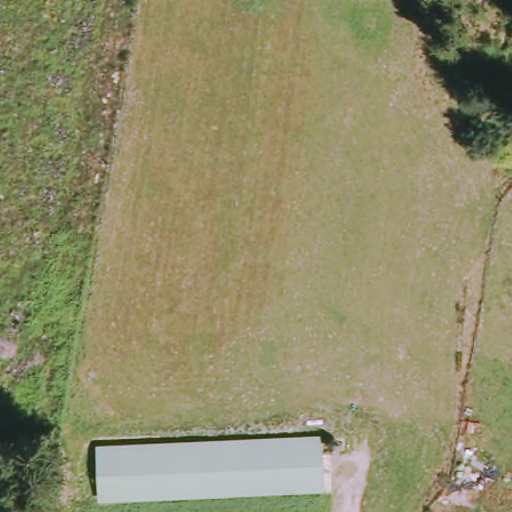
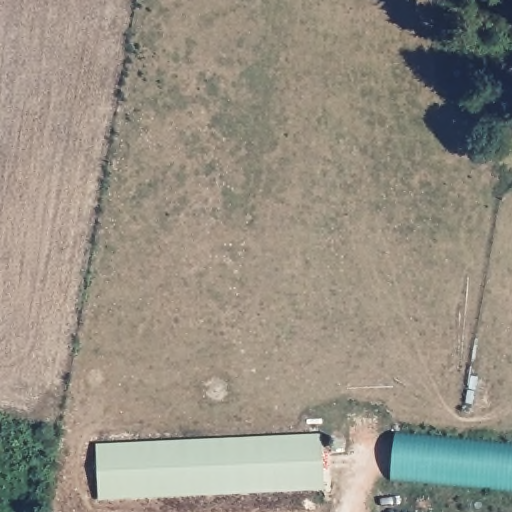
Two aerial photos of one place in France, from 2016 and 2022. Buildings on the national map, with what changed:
new [(512,489),(392,478),(397,434),(512,446),(512,489)]
unchanged [(105,499),(104,451),(328,443),(330,492),(105,499)]

